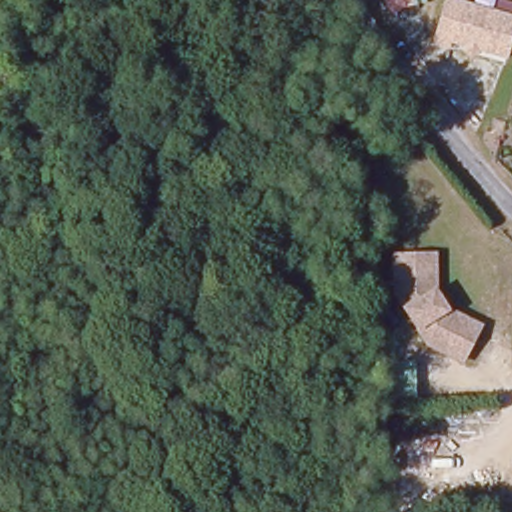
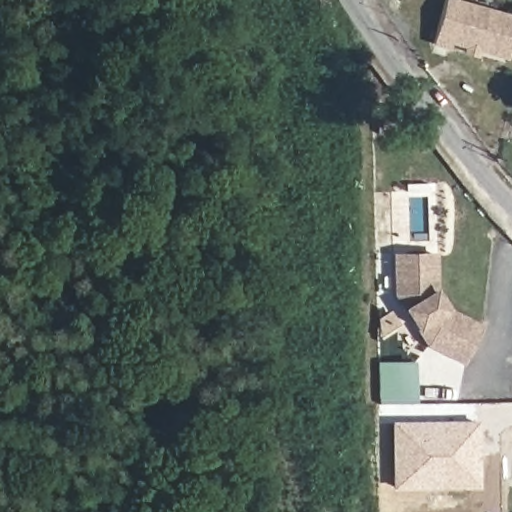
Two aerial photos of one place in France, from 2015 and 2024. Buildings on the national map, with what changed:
unchanged [(512,11),(512,57),(511,59),(455,44),(452,52),(432,47),(446,0),(467,0),(512,11)]
unchanged [(439,250),(441,295),(451,309),(481,322),(463,363),(422,344),(392,298),(391,251),(439,250)]
new [(378,369),(410,369),(410,398),(379,398),(378,369)]
new [(478,420),(480,489),(392,489),(391,421),(478,420)]

